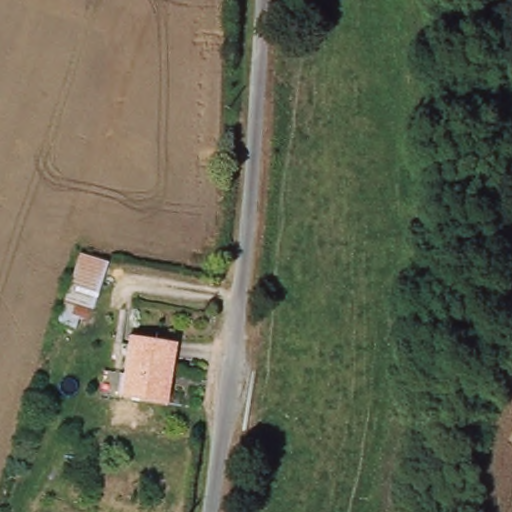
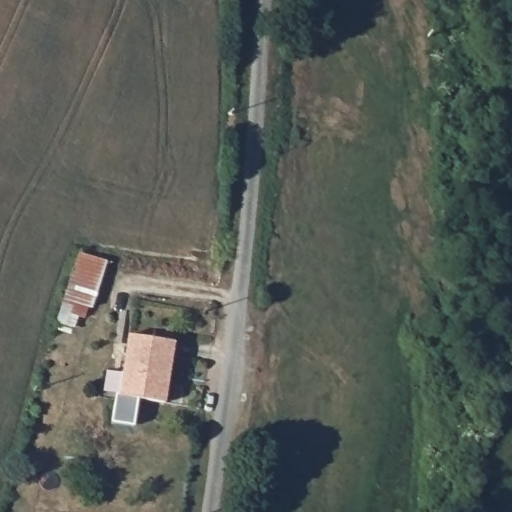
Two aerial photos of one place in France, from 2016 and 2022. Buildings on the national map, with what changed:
unchanged [(65,307),(61,302),(75,254),(105,262),(89,317),(84,315),(77,334),(58,328),(65,307)]
unchanged [(121,395),(132,337),(167,342),(177,344),(172,376),(169,403),(121,395)]

